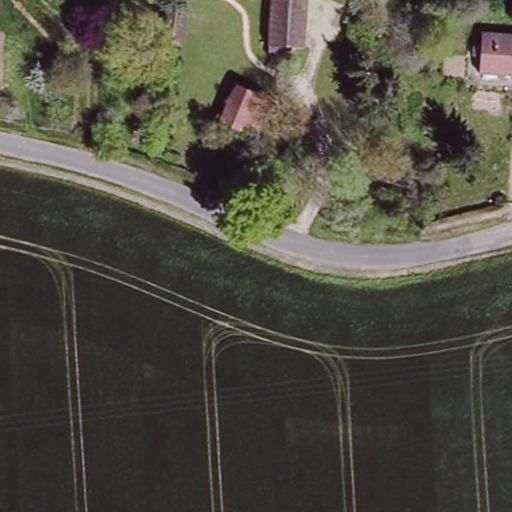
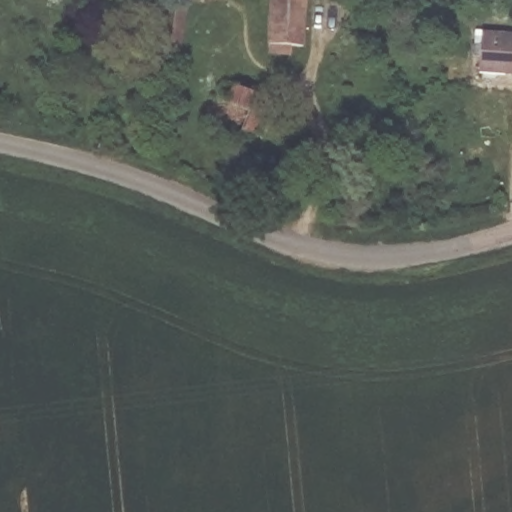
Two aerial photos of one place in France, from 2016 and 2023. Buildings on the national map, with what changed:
unchanged [(163,41),(168,0),(185,0),(180,43),(171,42),(163,41)]
unchanged [(302,43),(297,43),(295,59),(267,57),(270,0),(305,0),(302,43)]
unchanged [(512,34),(512,73),(480,71),(481,57),(471,56),(471,44),(483,44),(484,33),(512,34)]
unchanged [(260,88),(251,129),(220,123),(228,81),(260,88)]
unchanged [(275,193),(270,203),(261,198),(266,188),(275,193)]

